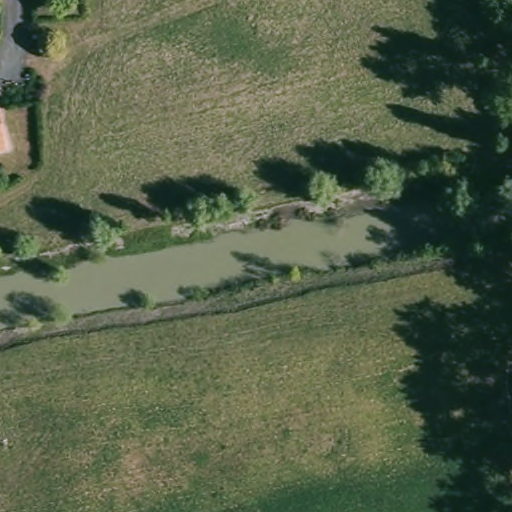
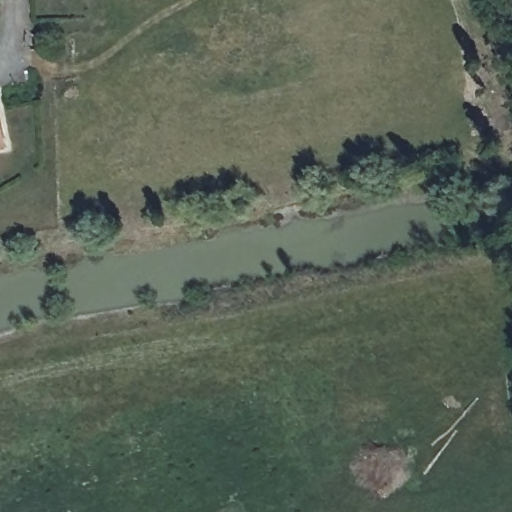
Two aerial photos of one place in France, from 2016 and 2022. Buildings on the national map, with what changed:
unchanged [(3,138),(5,146),(0,146),(0,122),(3,138)]

